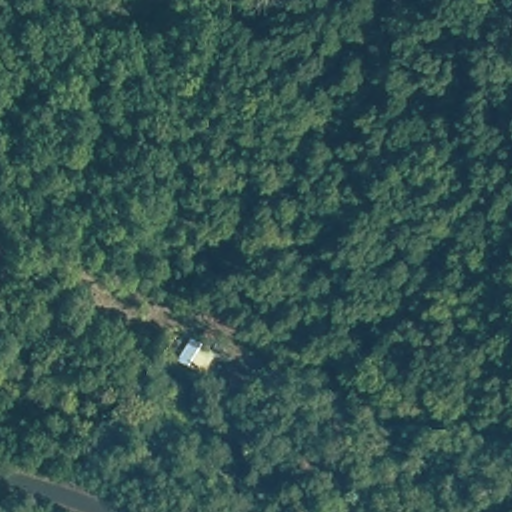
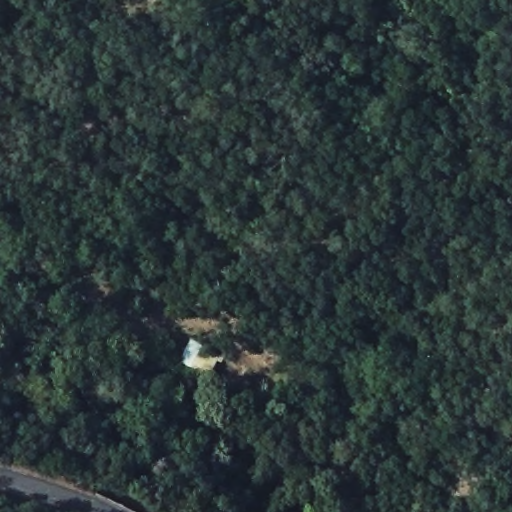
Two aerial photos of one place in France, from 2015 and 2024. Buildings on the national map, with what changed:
unchanged [(190,335),(218,351),(208,371),(180,361),(190,335)]

